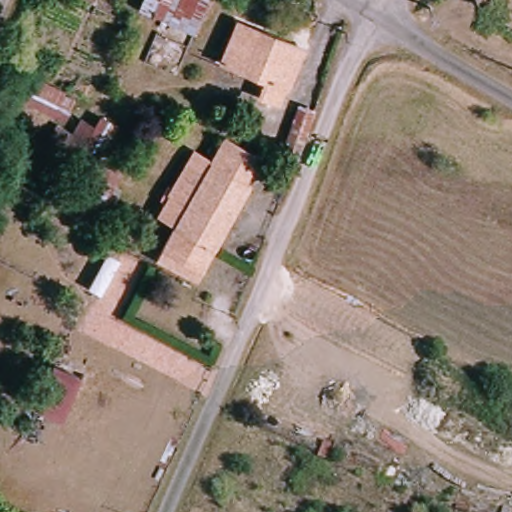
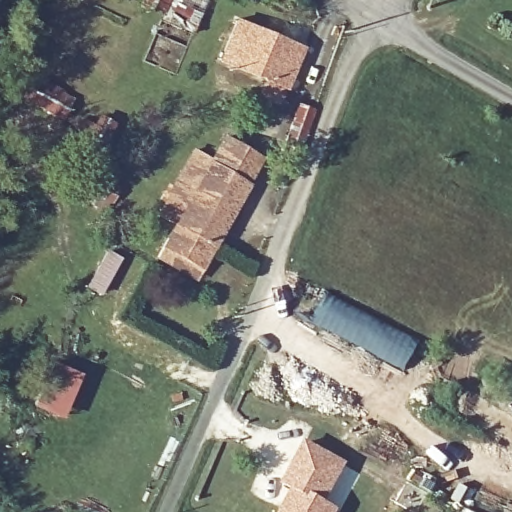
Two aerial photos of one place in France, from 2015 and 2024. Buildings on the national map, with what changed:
unchanged [(144,5),(146,0),(159,0),(154,10),(144,5)]
unchanged [(187,44),(179,60),(166,58),(164,64),(149,56),(172,0),(170,0),(207,0),(192,43),(187,44)]
unchanged [(303,49),(287,86),(222,58),(238,20),(303,49)]
unchanged [(51,101),(70,111),(64,122),(25,102),(6,93),(15,75),(33,85),(53,95),(51,101)]
unchanged [(300,148),(286,141),(301,105),(314,110),(300,148)]
unchanged [(99,129),(113,135),(101,160),(86,154),(99,129)]
unchanged [(264,161),(199,280),(160,259),(175,230),(163,224),(174,202),(198,159),(215,168),(228,143),(264,161)]
unchanged [(15,152),(4,171),(0,169),(0,145),(15,152)]
unchanged [(121,200),(113,214),(88,202),(96,187),(121,200)]
new [(307,285),(417,342),(404,368),(294,313),(307,285)]
unchanged [(83,377),(64,417),(34,404),(52,363),(83,377)]
new [(304,441),(346,463),(325,504),(337,511),(336,512),(278,512),(292,489),(281,484),(304,441)]

